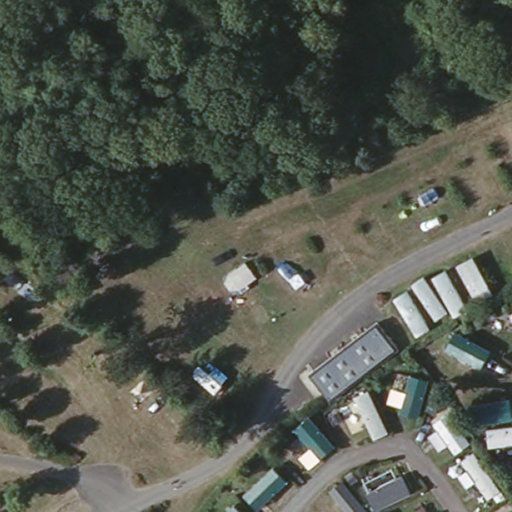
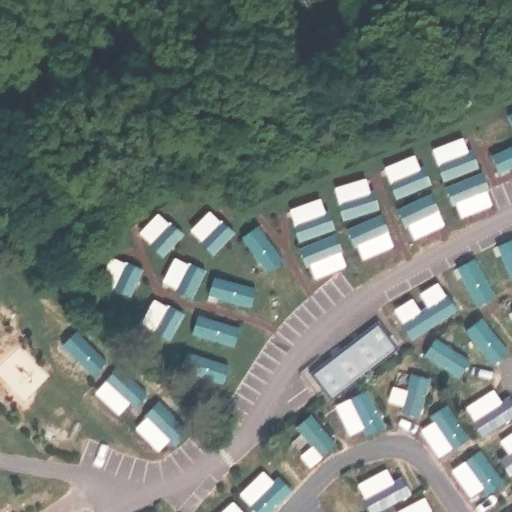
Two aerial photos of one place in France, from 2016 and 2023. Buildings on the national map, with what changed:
unchanged [(299,372),(353,337),(379,372),(324,410),(299,372)]

